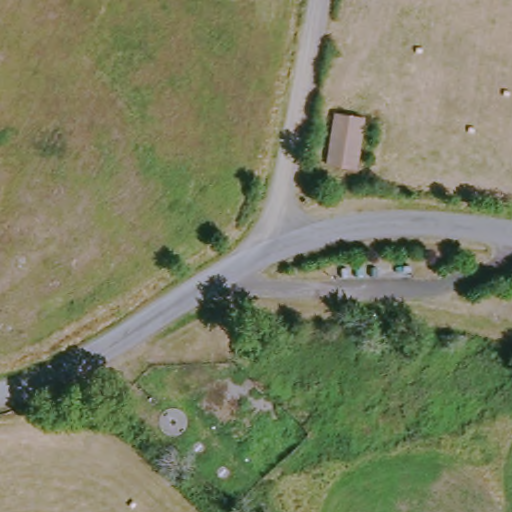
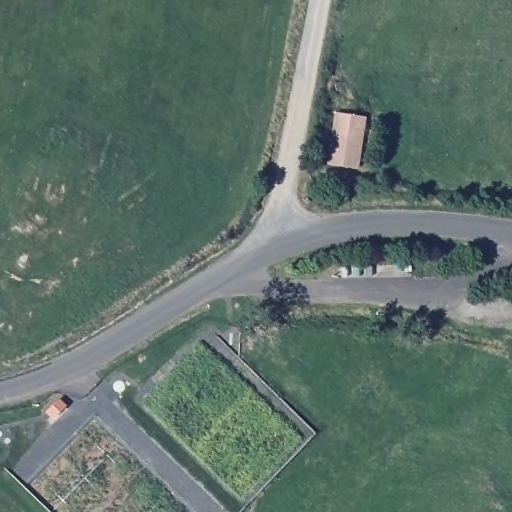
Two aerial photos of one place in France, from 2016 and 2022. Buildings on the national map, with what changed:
unchanged [(334,170),(345,114),(371,116),(361,175),(334,170)]

